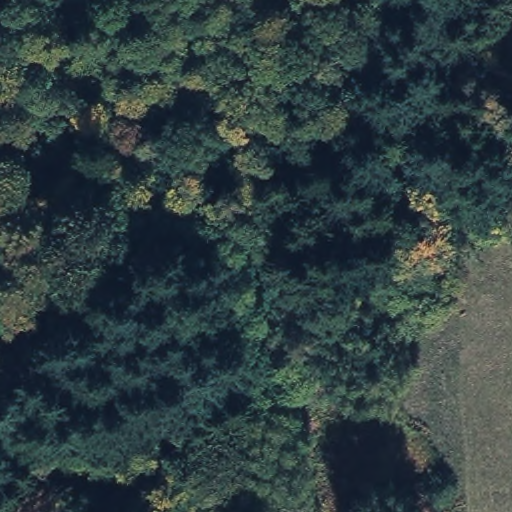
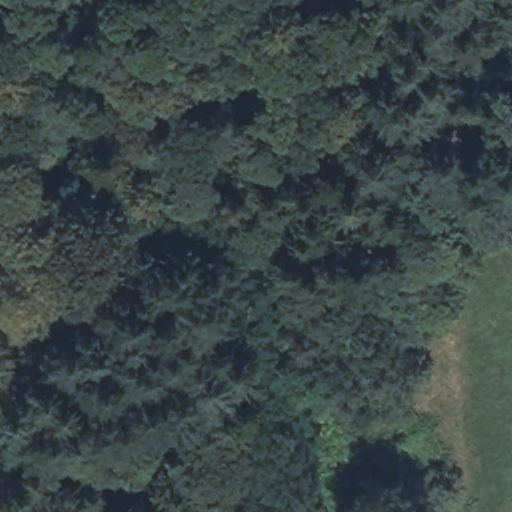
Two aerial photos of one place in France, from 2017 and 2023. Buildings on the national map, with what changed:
[]

